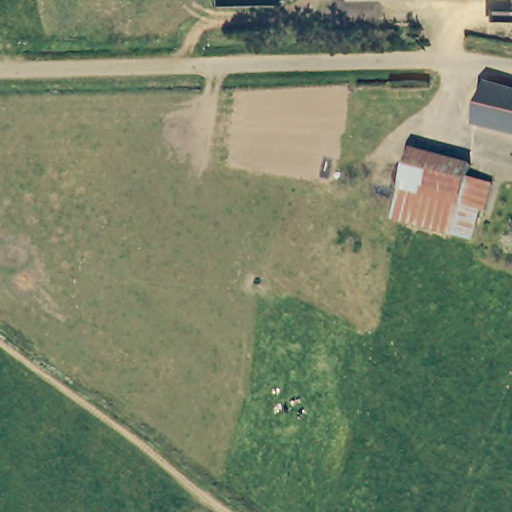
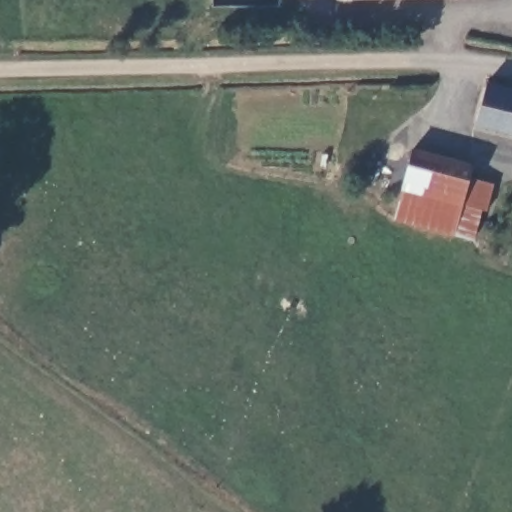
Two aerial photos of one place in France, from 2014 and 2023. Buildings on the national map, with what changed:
unchanged [(485,84),(512,91),(512,134),(477,123),(485,84)]
unchanged [(398,219),(415,151),(471,166),(468,178),(492,184),(486,211),(482,209),(474,238),(398,219)]

